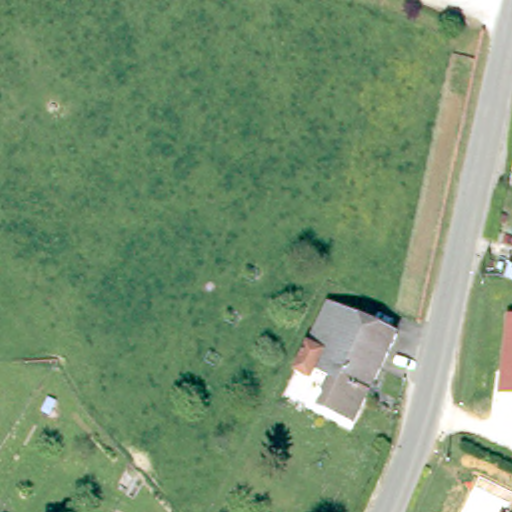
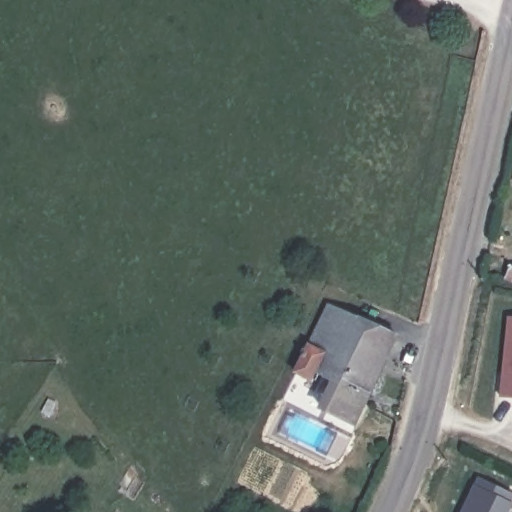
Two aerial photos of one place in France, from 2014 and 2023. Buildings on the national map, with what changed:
unchanged [(505,269),(512,256),(512,272),(505,269)]
unchanged [(397,337),(355,424),(323,409),(337,380),(303,363),(331,306),(397,337)]
unchanged [(500,396),(508,316),(512,317),(512,397),(500,396)]
new [(478,476),(512,492),(512,509),(511,512),(462,512),(478,476)]

